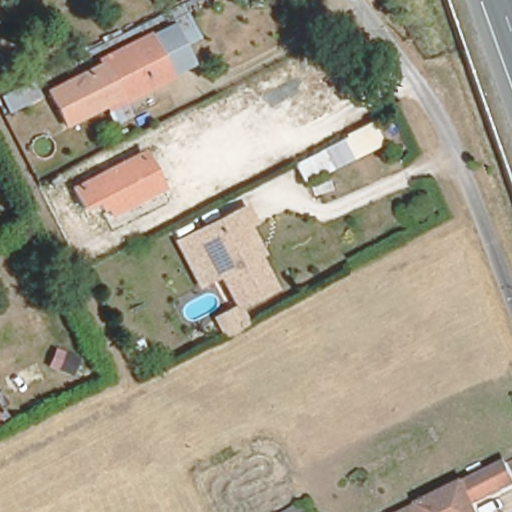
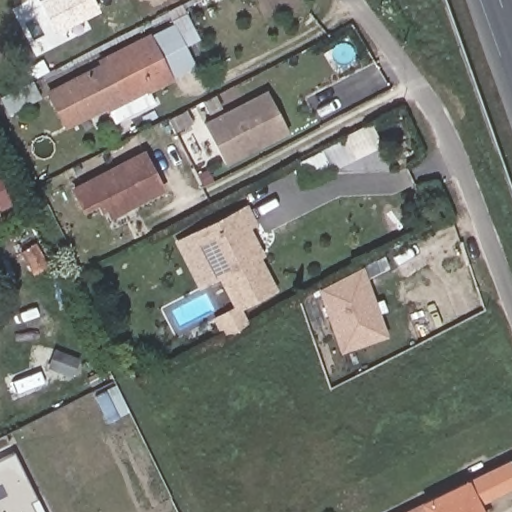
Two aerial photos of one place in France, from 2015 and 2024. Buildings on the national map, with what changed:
new [(53,34),(36,0),(92,0),(97,10),(53,34)]
new [(171,24),(170,21),(184,13),(198,39),(185,46),(192,60),(189,70),(174,78),(170,70),(174,68),(155,32),(171,24)]
unchanged [(174,68),(114,97),(112,93),(58,118),(40,84),(114,49),(112,45),(152,27),(174,68)]
new [(32,81),(40,97),(8,114),(0,97),(32,81)]
new [(202,122),(267,90),(288,132),(223,165),(202,122)]
new [(381,145),(302,185),(292,164),(344,138),(343,134),(370,122),(381,145)]
unchanged [(137,146),(156,181),(103,206),(100,199),(95,202),(91,195),(75,202),(65,180),(137,146)]
unchanged [(193,230),(214,220),(244,206),(253,222),(247,224),(256,242),(261,253),(257,255),(274,287),(237,305),(222,273),(216,276),(196,288),(172,240),(193,230)]
new [(372,260),(377,272),(366,279),(388,337),(340,353),(315,289),(372,260)]
new [(0,512),(0,461),(14,454),(43,512),(0,512)]
unchanged [(503,486),(465,503),(470,512),(391,512),(492,464),(503,486)]

